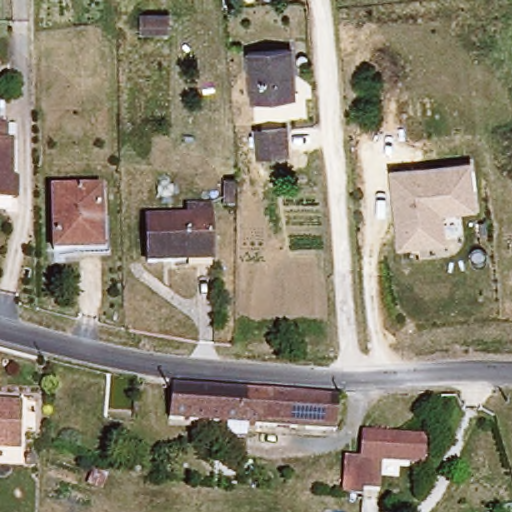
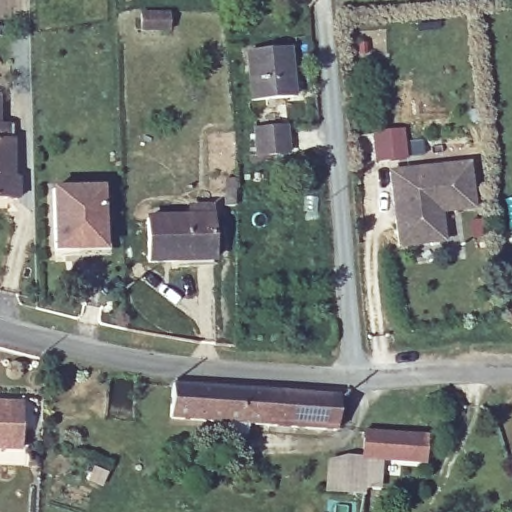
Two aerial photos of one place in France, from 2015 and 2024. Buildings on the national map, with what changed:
unchanged [(140,29),(141,14),(168,15),(167,30),(140,29)]
unchanged [(250,100),(246,51),(287,48),(290,97),(250,100)]
unchanged [(0,199),(0,97),(1,98),(0,124),(10,125),(10,139),(15,139),(15,180),(19,181),(19,200),(0,199)]
new [(402,130),(405,159),(376,162),(373,133),(402,130)]
unchanged [(256,162),(254,135),(284,132),(287,159),(256,162)]
unchanged [(386,170),(470,160),(476,209),(442,213),(445,243),(395,250),(386,170)]
unchanged [(57,248),(55,191),(98,190),(99,247),(57,248)]
unchanged [(179,265),(179,259),(150,260),(149,216),(189,214),(189,204),(213,204),(214,214),(215,254),(215,264),(179,265)]
unchanged [(231,434),(232,422),(171,417),(174,383),(341,397),(338,431),(251,424),(250,436),(231,434)]
unchanged [(17,451),(0,450),(0,403),(20,404),(17,451)]
unchanged [(340,492),(343,457),(360,458),(362,433),(422,437),(420,462),(378,459),(376,485),(361,484),(361,493),(340,492)]
unchanged [(87,482),(92,470),(106,476),(100,488),(87,482)]

